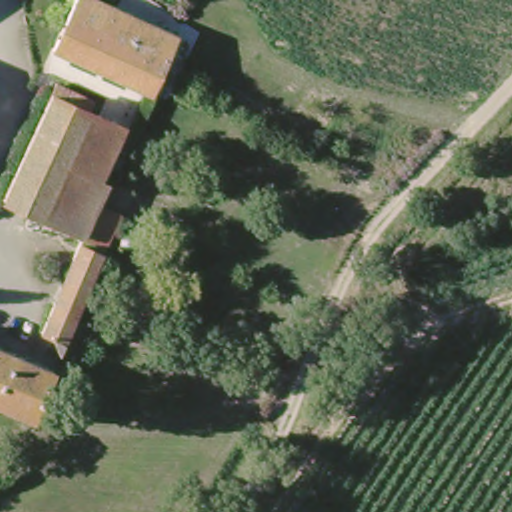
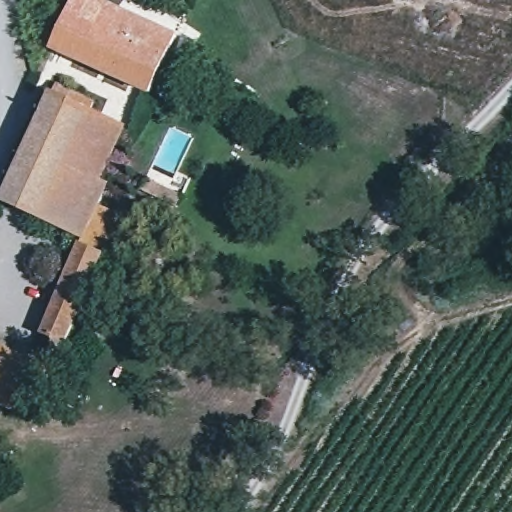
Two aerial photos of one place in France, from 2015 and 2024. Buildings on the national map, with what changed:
unchanged [(54,45),(73,0),(103,0),(177,31),(151,88),(54,45)]
unchanged [(104,190),(94,212),(120,225),(79,313),(62,352),(33,338),(80,241),(0,201),(0,196),(54,86),(89,101),(84,110),(123,128),(96,186),(104,190)]
unchanged [(50,372),(29,420),(24,417),(0,405),(0,348),(50,372)]

